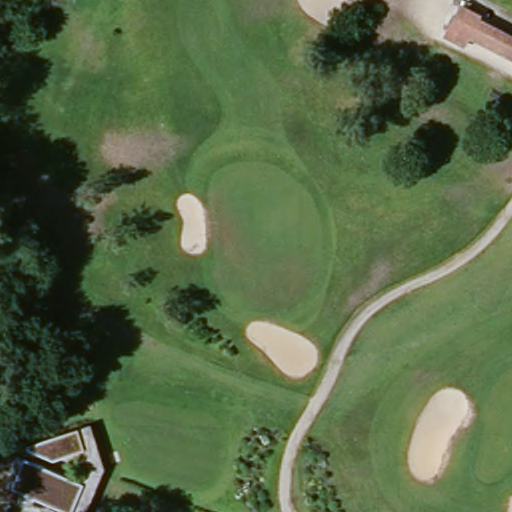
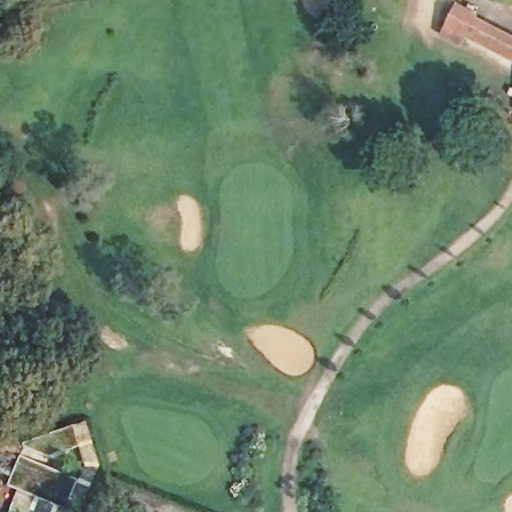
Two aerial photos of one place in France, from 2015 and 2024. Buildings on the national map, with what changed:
unchanged [(465,44),(443,33),(461,1),(483,13),(482,16),(512,32),(512,57),(470,36),(465,44)]
unchanged [(103,467),(93,488),(82,483),(83,483),(91,467),(85,451),(67,457),(59,459),(54,461),(28,445),(54,437),(60,435),(90,426),(103,467)]
unchanged [(63,473),(83,483),(82,483),(93,488),(85,505),(81,512),(60,512),(11,486),(27,454),(63,473)]

